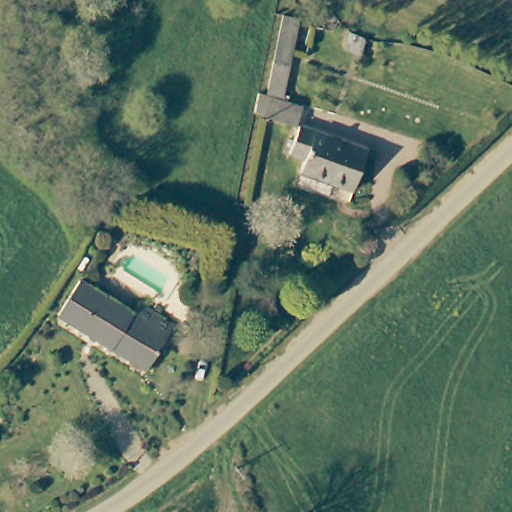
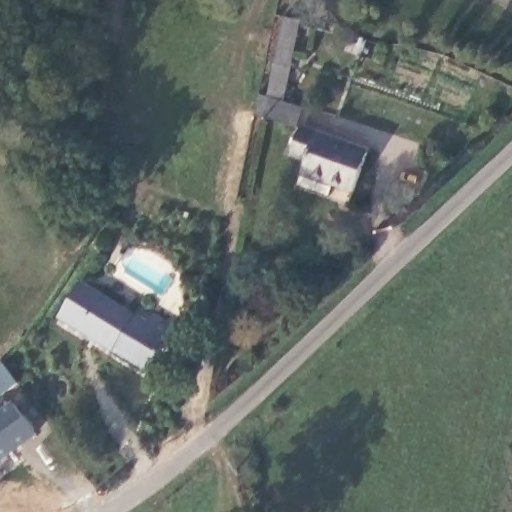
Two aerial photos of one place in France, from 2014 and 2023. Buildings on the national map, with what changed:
unchanged [(279,17),(298,21),(287,67),(269,64),(279,17)]
unchanged [(262,100),(300,108),(297,125),(259,117),(262,100)]
unchanged [(374,142),(364,184),(310,174),(313,161),(294,157),(301,126),(374,142)]
unchanged [(132,315),(142,305),(172,335),(137,370),(109,340),(104,344),(55,313),(87,278),(132,315)]
new [(0,461),(0,410),(12,401),(37,435),(0,461)]

